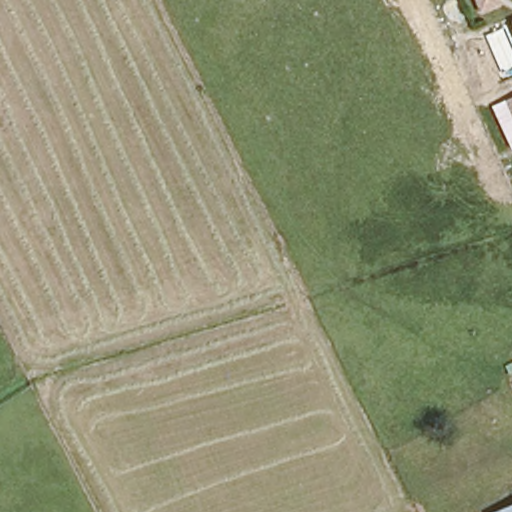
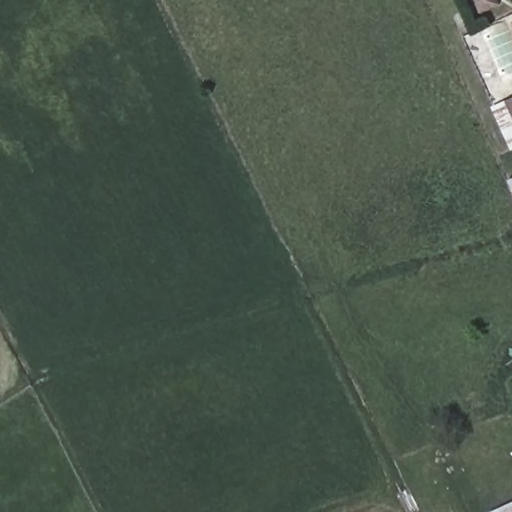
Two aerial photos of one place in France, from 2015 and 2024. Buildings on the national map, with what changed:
unchanged [(512,115),(506,100),(512,98),(512,115)]
unchanged [(512,512),(490,512),(512,503),(512,512)]

